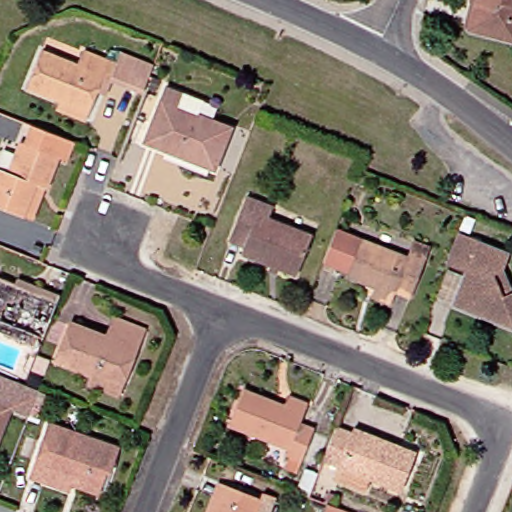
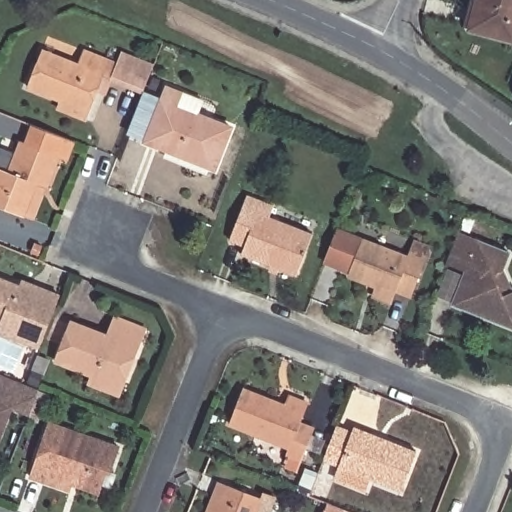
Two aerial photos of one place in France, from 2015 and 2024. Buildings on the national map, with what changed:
unchanged [(512,38),(471,27),(478,0),(512,0),(512,38)]
unchanged [(61,111),(65,100),(32,88),(47,52),(82,66),(87,51),(122,65),(125,54),(158,66),(147,95),(116,82),(110,98),(100,95),(93,111),(89,121),(61,111)]
unchanged [(200,115),(234,130),(217,170),(150,142),(172,89),(205,102),(200,115)]
unchanged [(11,176),(25,142),(30,144),(37,126),(79,142),(71,160),(62,157),(50,190),(37,220),(29,217),(0,205),(0,172),(11,176)]
unchanged [(272,219),(316,237),(300,276),(246,255),(249,248),(234,242),(252,197),(277,208),(272,219)]
unchanged [(371,297),(376,286),(348,276),(350,272),(325,263),(337,231),(408,259),(410,253),(415,242),(429,248),(426,259),(408,299),(395,294),(391,305),(371,297)]
unchanged [(512,285),(512,327),(459,306),(471,274),(453,266),(465,235),(512,255),(512,259),(507,271),(512,285)]
unchanged [(0,321),(0,278),(19,286),(22,280),(42,289),(64,297),(47,340),(43,349),(0,332),(0,322),(1,321),(0,321)]
unchanged [(94,386),(97,378),(62,363),(77,325),(113,339),(121,320),(149,332),(127,384),(122,397),(94,386)]
unchanged [(28,386),(43,392),(32,418),(14,410),(0,445),(0,375),(28,386)]
unchanged [(290,407),(293,397),(312,405),(306,425),(318,430),(301,472),(288,468),(294,452),(234,427),(247,391),(290,407)]
unchanged [(71,488),(69,492),(30,480),(49,423),(121,447),(111,474),(107,473),(102,487),(99,497),(71,488)]
unchanged [(338,479),(343,467),(327,461),(340,428),(356,434),(358,429),(421,454),(405,492),(373,479),(369,491),(338,479)]
unchanged [(216,512),(227,484),(236,488),(272,502),(268,512),(216,512)]

